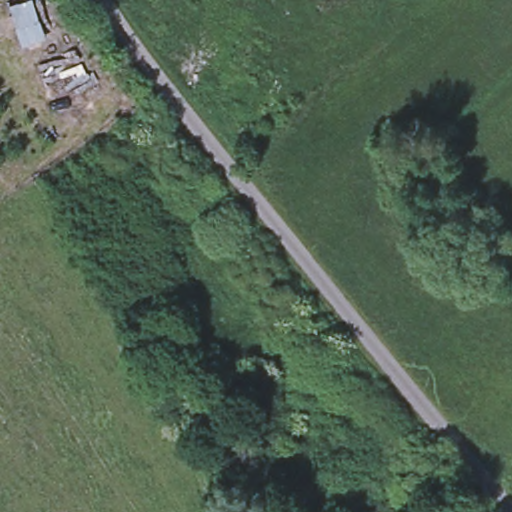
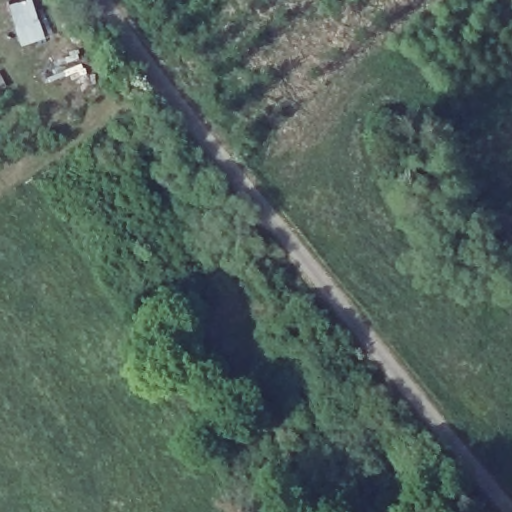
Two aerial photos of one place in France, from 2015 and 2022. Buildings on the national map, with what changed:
unchanged [(22,49),(7,6),(27,0),(32,0),(47,41),(22,49)]

